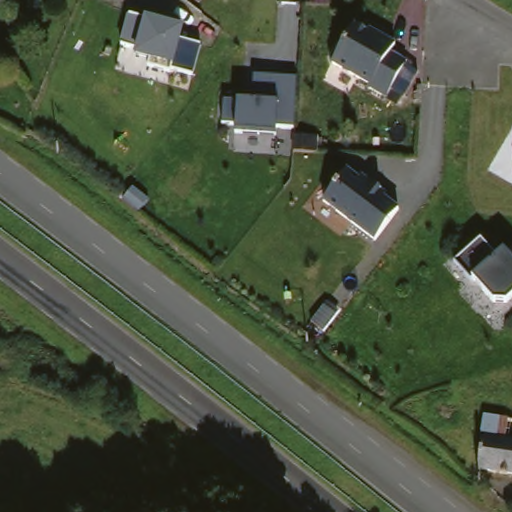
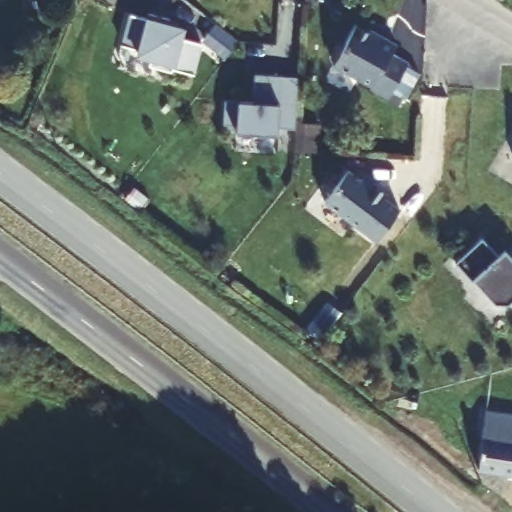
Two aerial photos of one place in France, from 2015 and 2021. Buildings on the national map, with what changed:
unchanged [(129,11),(185,25),(175,63),(121,45),(129,11)]
unchanged [(361,20),(395,42),(386,52),(418,80),(399,101),(333,59),(361,20)]
unchanged [(226,96),(254,98),(256,75),(300,80),(297,131),(278,131),(236,131),(235,123),(224,121),(226,96)]
unchanged [(356,166),(405,210),(378,237),(327,197),(356,166)]
unchanged [(484,240),(497,256),(504,249),(512,258),(512,292),(499,303),(473,277),(458,262),(484,240)]
unchanged [(481,465),(489,412),(512,415),(512,470),(481,465)]

